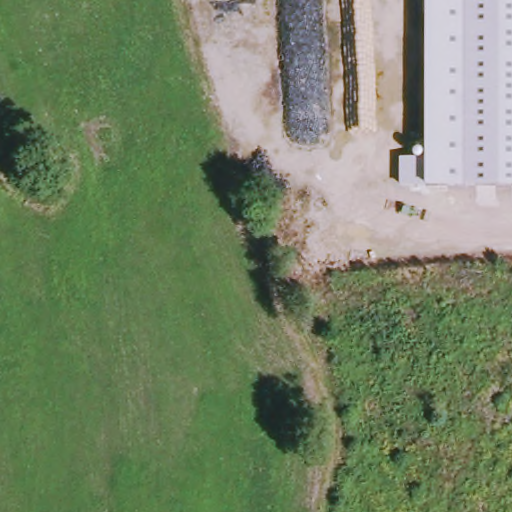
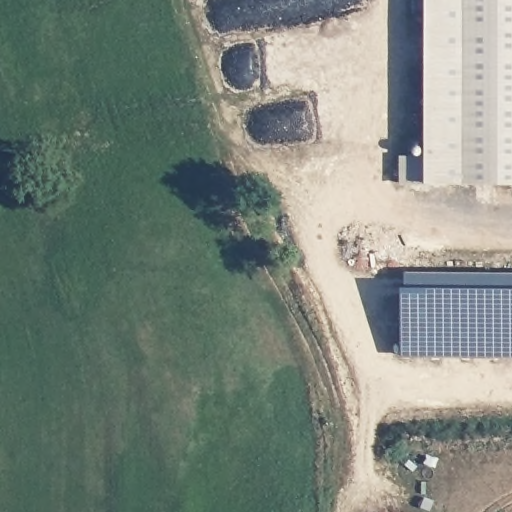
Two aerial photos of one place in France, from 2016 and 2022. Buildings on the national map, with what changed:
unchanged [(397,183),(398,154),(423,155),(424,0),(512,0),(512,184),(423,183),(397,183)]
new [(402,357),(403,288),(407,287),(407,273),(512,274),(512,358),(402,357)]

